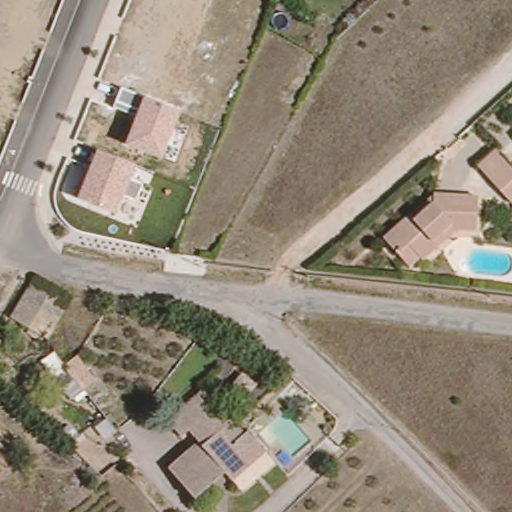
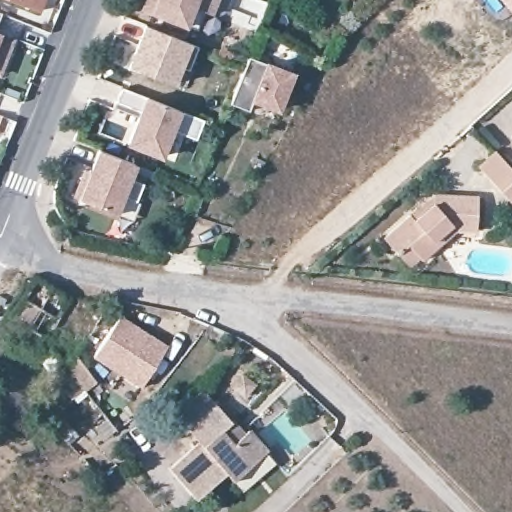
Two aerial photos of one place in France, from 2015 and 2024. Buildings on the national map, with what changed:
new [(46,13),(13,0),(52,0),(46,13)]
new [(145,0),(216,0),(210,14),(202,11),(195,29),(142,8),(145,0)]
new [(512,7),(505,0),(512,0),(512,7)]
unchanged [(1,13),(0,16),(0,13),(1,13)]
new [(145,25),(197,46),(188,69),(178,65),(171,83),(130,66),(145,25)]
unchanged [(8,32),(6,38),(12,40),(0,72),(0,29),(8,32)]
new [(263,63),(264,60),(295,71),(280,111),(253,101),(250,111),(230,105),(248,57),(263,63)]
unchanged [(180,108),(161,159),(126,146),(136,116),(113,108),(121,88),(180,108)]
unchanged [(512,139),(512,145),(509,141),(512,139)]
unchanged [(512,166),(512,196),(510,198),(473,163),(492,145),(512,166)]
unchanged [(138,165),(132,179),(143,184),(136,202),(125,198),(119,213),(77,197),(96,149),(138,165)]
unchanged [(385,260),(374,248),(400,227),(406,227),(425,211),(425,202),(471,198),(473,234),(450,237),(424,260),(415,268),(412,263),(400,275),(385,260)]
unchanged [(9,321),(32,283),(67,301),(43,343),(9,321)]
new [(93,357),(120,316),(167,346),(139,389),(93,357)]
new [(76,355),(96,382),(85,392),(65,365),(76,355)]
unchanged [(165,429),(198,398),(225,425),(238,438),(246,437),(262,457),(227,491),(218,481),(191,505),(164,473),(191,448),(182,438),(177,442),(165,429)]

